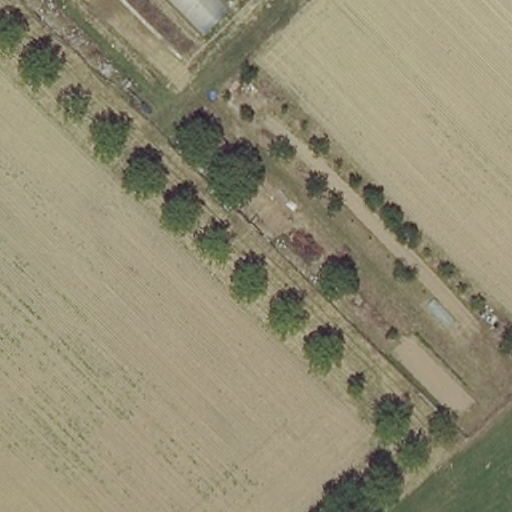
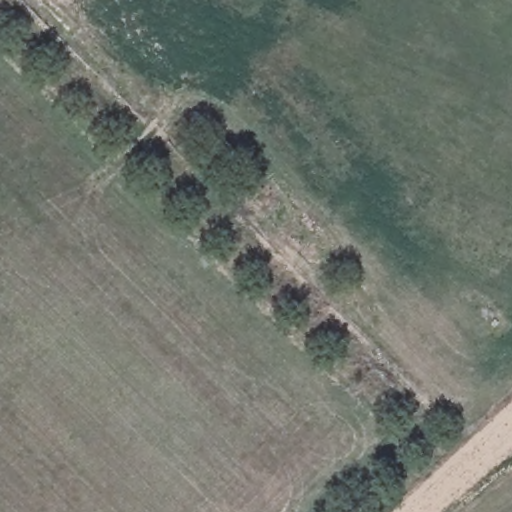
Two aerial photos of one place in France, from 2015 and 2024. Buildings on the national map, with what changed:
demolished [(228,3),(200,32),(169,0),(226,0),(228,3)]

